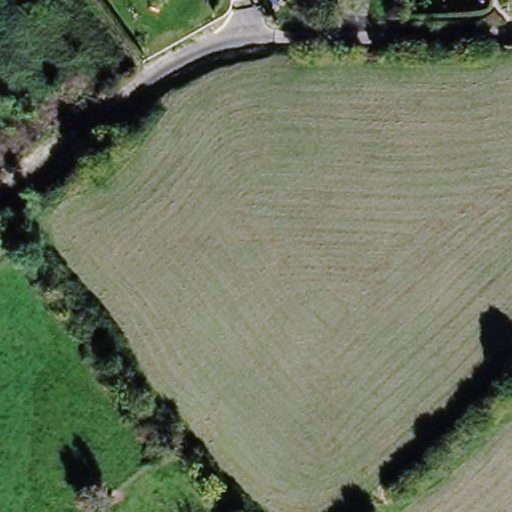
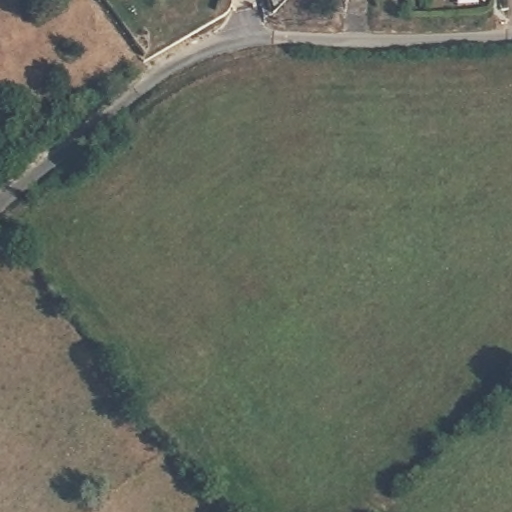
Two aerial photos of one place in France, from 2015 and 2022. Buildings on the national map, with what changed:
[]

